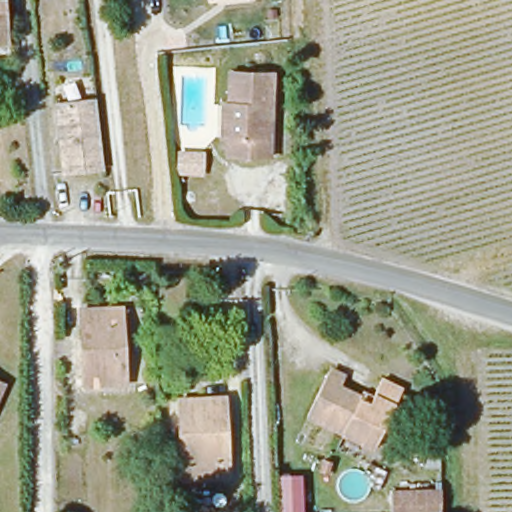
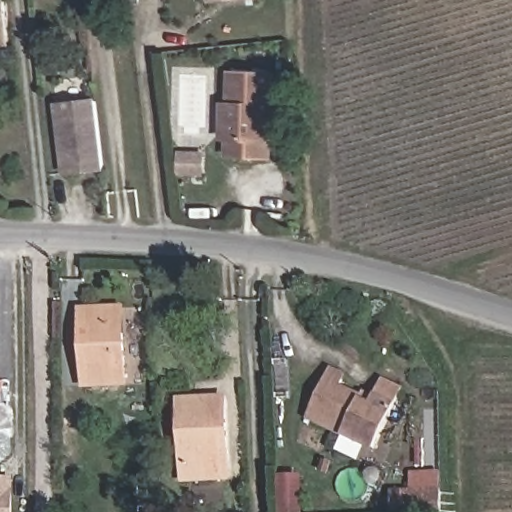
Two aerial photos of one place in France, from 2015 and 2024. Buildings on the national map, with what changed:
unchanged [(208,0),(232,0),(209,2),(208,0)]
unchanged [(0,46),(0,6),(7,5),(10,45),(0,46)]
unchanged [(225,101),(232,101),(233,70),(277,72),(273,159),(230,156),(230,128),(225,127),(225,101)]
unchanged [(59,135),(59,129),(57,104),(68,103),(96,100),(104,169),(77,171),(64,173),(59,135)]
unchanged [(207,156),(207,173),(187,172),(187,155),(207,156)]
unchanged [(87,387),(84,311),(119,309),(124,308),(126,337),(129,386),(87,387)]
unchanged [(307,418),(327,371),(343,379),(341,388),(362,398),(360,402),(371,407),(380,388),(383,380),(405,390),(401,398),(376,453),(307,418)]
unchanged [(0,388),(0,387),(1,387),(0,388)]
unchanged [(225,478),(186,479),(182,398),(227,397),(231,459),(232,477),(225,478)]
new [(0,482),(11,482),(11,512),(0,512),(0,482)]
unchanged [(392,490),(442,488),(443,512),(392,512),(392,490)]

